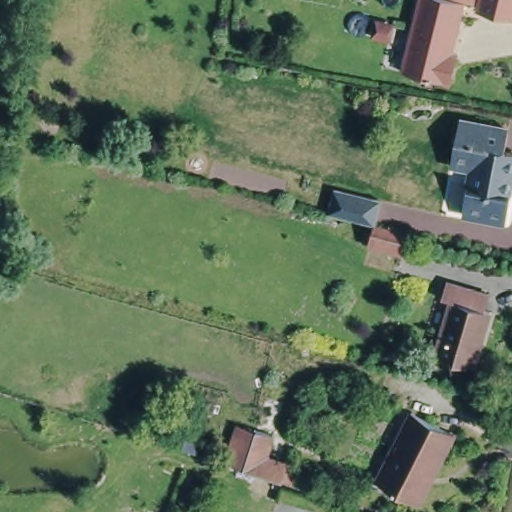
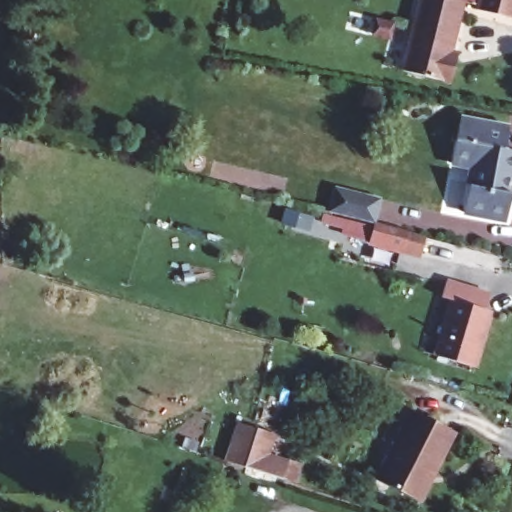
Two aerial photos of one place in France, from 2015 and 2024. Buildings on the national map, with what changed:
unchanged [(454,62),(446,85),(396,72),(417,0),(449,0),(461,3),(443,59),(454,62)]
unchanged [(474,13),(477,0),(512,0),(512,11),(508,23),(474,13)]
unchanged [(512,152),(512,165),(500,222),(459,213),(469,167),(448,162),(453,140),(457,122),(499,131),(495,149),(512,152)]
unchanged [(382,201),(376,223),(333,212),(338,190),(382,201)]
unchanged [(402,253),(369,245),(376,226),(386,228),(404,233),(407,234),(402,253)]
unchanged [(488,300),(484,315),(489,316),(474,367),(438,357),(449,310),(439,307),(444,289),(488,300)]
unchanged [(414,502),(374,484),(408,417),(453,437),(436,473),(422,505),(414,502)]
unchanged [(221,462),(234,425),(272,435),(266,453),(302,464),(294,486),(221,462)]

